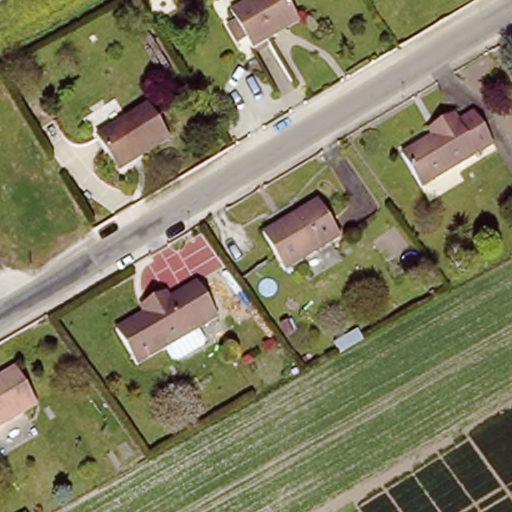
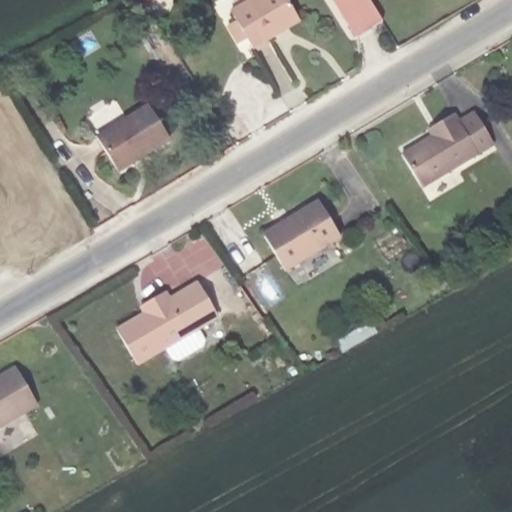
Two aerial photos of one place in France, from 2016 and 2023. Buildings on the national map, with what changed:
unchanged [(253,44),(233,6),(245,0),(289,0),(295,11),(299,19),(276,31),(253,44)]
new [(355,38),(331,0),(368,0),(381,21),(355,38)]
unchanged [(169,139),(118,170),(98,136),(149,106),(169,139)]
unchanged [(433,141),(429,134),(452,120),(457,129),(475,119),(493,148),(420,193),(401,161),(433,141)]
unchanged [(319,202),(342,238),(287,272),(265,236),(319,202)]
unchanged [(116,330),(145,313),(149,310),(145,304),(165,292),(168,297),(197,280),(219,317),(137,366),(116,330)]
unchanged [(34,407),(0,427),(0,376),(10,370),(34,407)]

